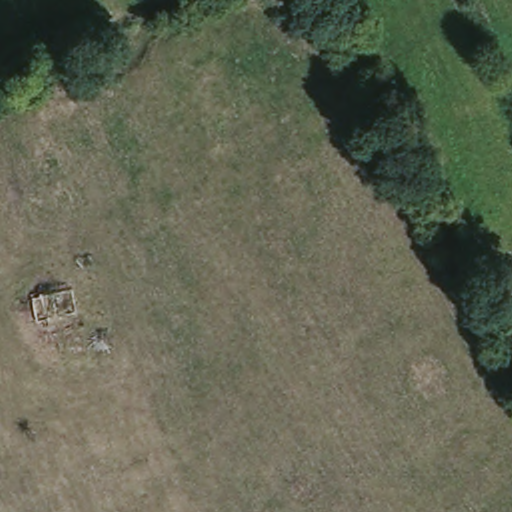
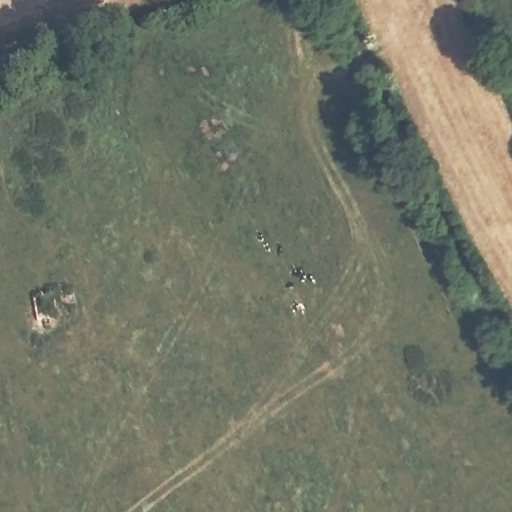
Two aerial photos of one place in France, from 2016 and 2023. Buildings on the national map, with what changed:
unchanged [(74,289),(79,315),(39,322),(34,296),(74,289)]

